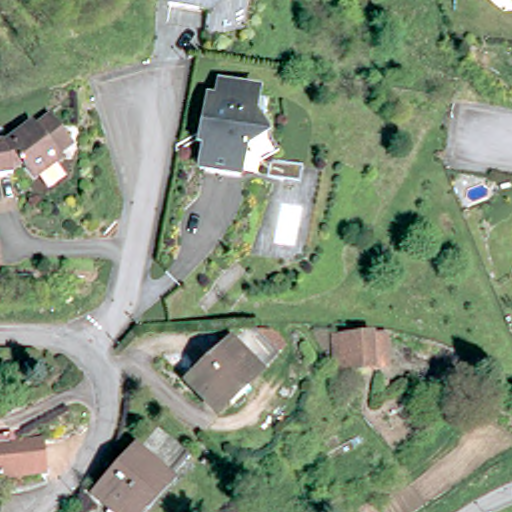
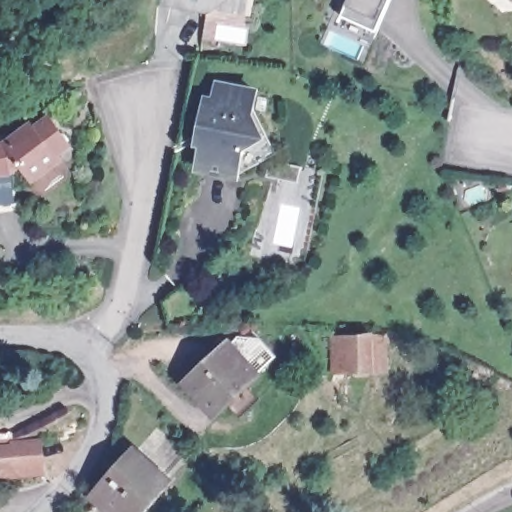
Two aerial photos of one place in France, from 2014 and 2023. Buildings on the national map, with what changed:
unchanged [(213,7),(166,2),(166,0),(218,0),(213,7)]
new [(377,30),(343,15),(348,4),(349,0),(391,0),(377,30)]
unchanged [(256,117),(268,134),(248,148),(243,173),(197,165),(201,149),(191,146),(201,96),(213,97),(216,79),(261,88),(256,117)]
unchanged [(27,121),(32,127),(45,117),(65,144),(54,152),(54,160),(28,177),(15,167),(0,170),(0,141),(1,140),(27,121)]
unchanged [(356,371),(339,368),(337,333),(373,329),(390,328),(391,366),(356,371)]
unchanged [(221,408),(194,381),(234,339),(261,366),(221,408)]
unchanged [(42,439),(45,479),(0,481),(0,443),(42,439)]
unchanged [(123,512),(104,495),(124,472),(116,464),(133,446),(164,473),(130,512),(123,512)]

